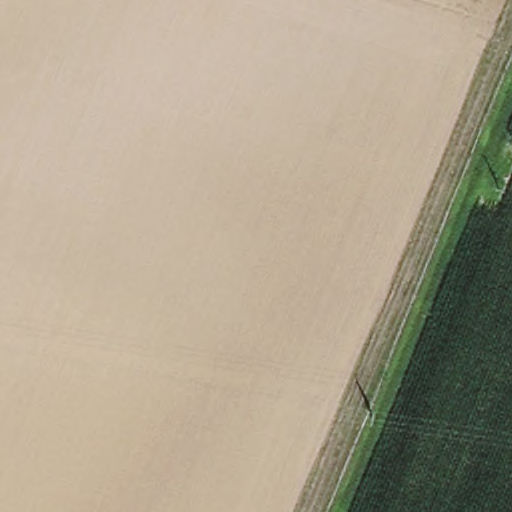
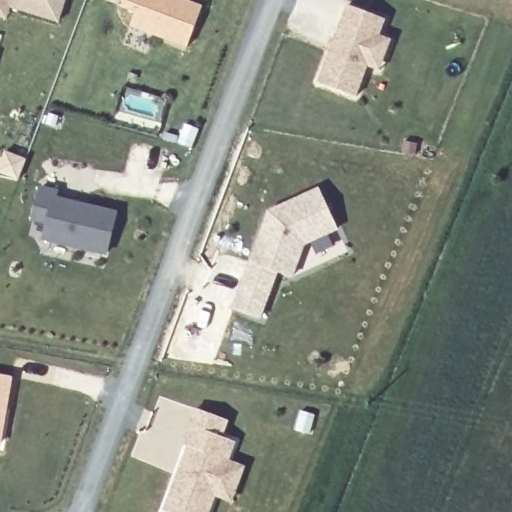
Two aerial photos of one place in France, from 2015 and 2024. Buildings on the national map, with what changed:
new [(11,0),(65,0),(56,32),(5,19),(11,0)]
new [(202,7),(187,50),(129,27),(134,12),(119,8),(122,0),(183,0),(202,7)]
new [(380,71),(368,66),(357,97),(320,83),(347,7),(385,20),(380,36),(392,40),(380,71)]
new [(252,260),(270,209),(318,186),(337,225),(305,240),(292,274),(277,269),(272,285),(261,315),(235,306),(246,276),(252,260)]
new [(40,188),(56,191),(55,197),(116,210),(107,251),(46,239),(49,223),(33,220),(40,188)]
new [(1,445),(0,445),(0,373),(13,375),(1,445)]
new [(217,496),(212,512),(168,512),(191,448),(186,446),(192,428),(199,411),(229,422),(223,439),(237,443),(230,463),(246,469),(234,502),(217,496)]

